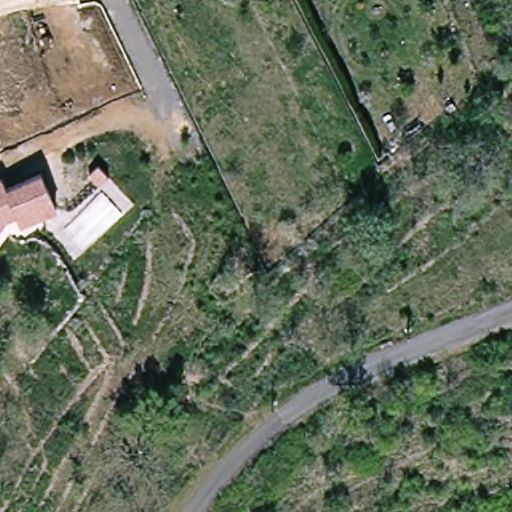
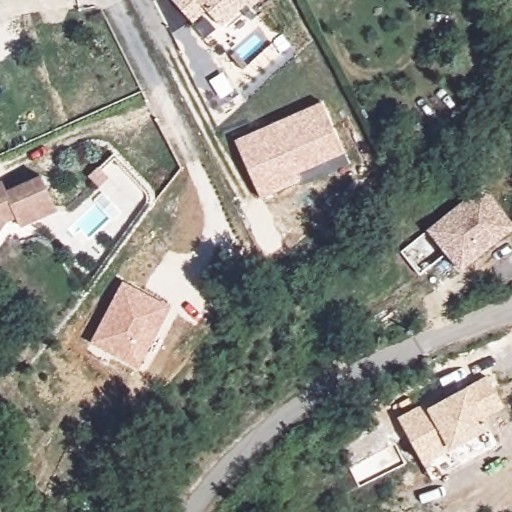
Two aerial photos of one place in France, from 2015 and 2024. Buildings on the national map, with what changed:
new [(243,10),(223,27),(207,10),(192,24),(171,0),(261,0),(247,15),(243,10)]
new [(299,174),(302,181),(260,200),(234,140),(321,101),(343,154),(299,174)]
unchanged [(108,150),(119,160),(110,169),(99,159),(108,150)]
unchanged [(4,184),(9,193),(39,178),(45,175),(62,208),(58,210),(24,227),(18,212),(7,217),(9,224),(0,237),(0,186),(4,184)]
new [(481,186),(512,225),(512,231),(462,271),(426,229),(481,186)]
new [(139,367),(91,342),(123,280),(171,306),(139,367)]
new [(397,417),(424,401),(427,407),(467,385),(486,375),(505,406),(486,417),(491,426),(450,449),(424,465),(397,417)]

